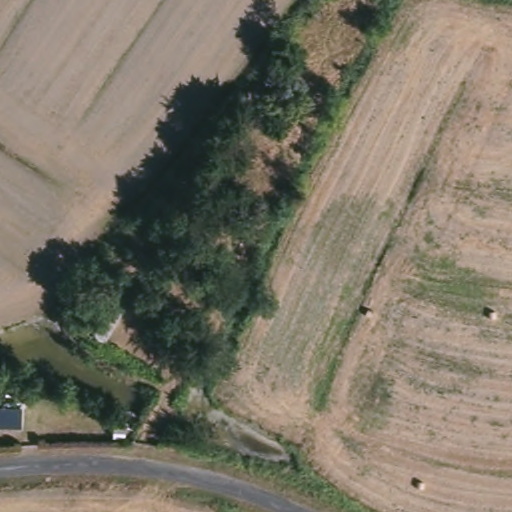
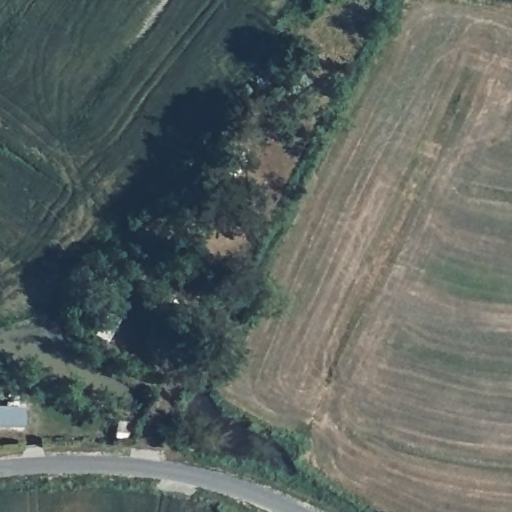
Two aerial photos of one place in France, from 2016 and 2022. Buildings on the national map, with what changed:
unchanged [(30,425),(0,424),(0,411),(30,410),(30,425)]

